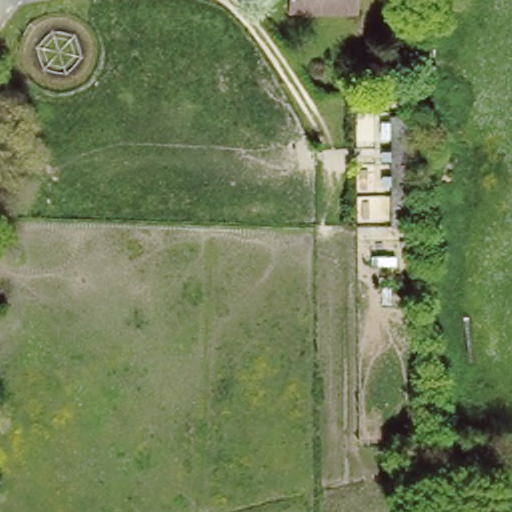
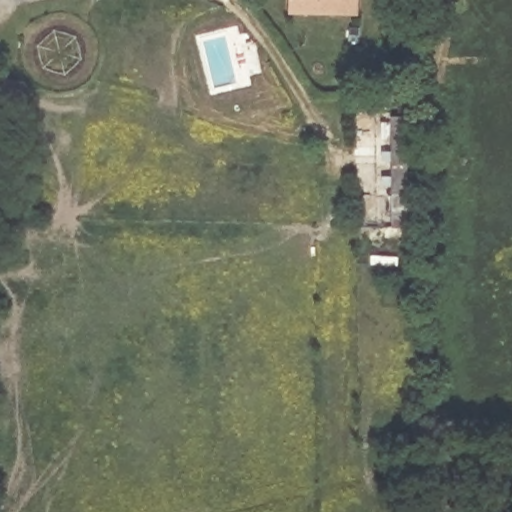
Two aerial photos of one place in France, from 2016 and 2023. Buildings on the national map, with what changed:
unchanged [(290,10),(290,0),(358,0),(358,6),(290,10)]
unchanged [(410,220),(397,221),(392,106),(405,106),(410,220)]

